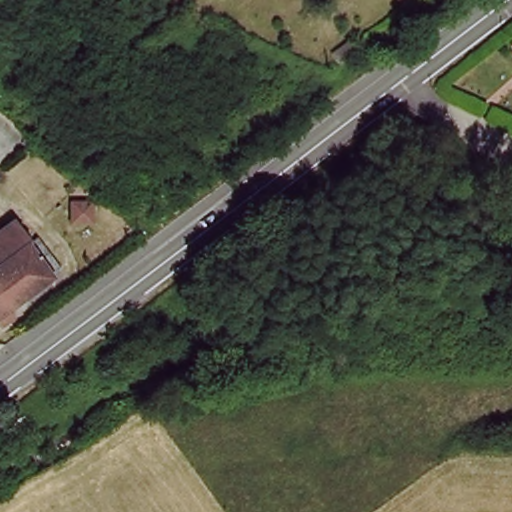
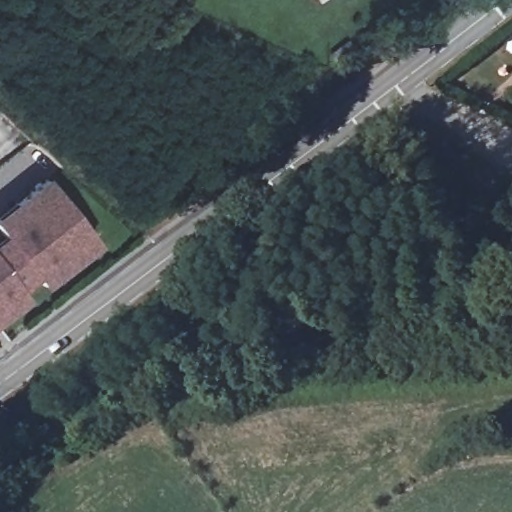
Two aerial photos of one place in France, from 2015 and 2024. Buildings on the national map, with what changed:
new [(98,246),(59,275),(32,240),(21,247),(9,230),(2,235),(0,233),(0,213),(45,178),(98,246)]
unchanged [(0,261),(0,236),(9,230),(21,247),(0,261)]
unchanged [(21,247),(32,240),(59,275),(0,315),(0,261),(21,247)]

